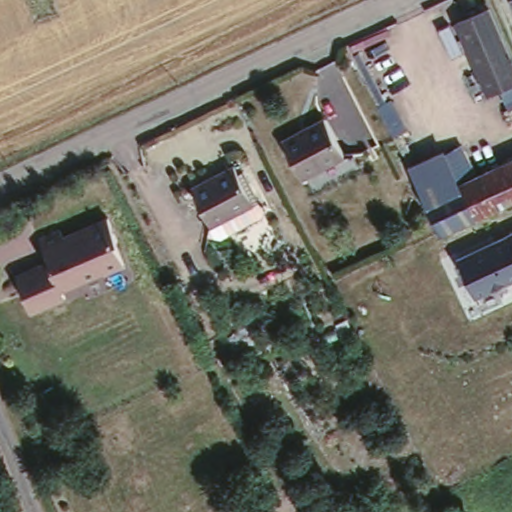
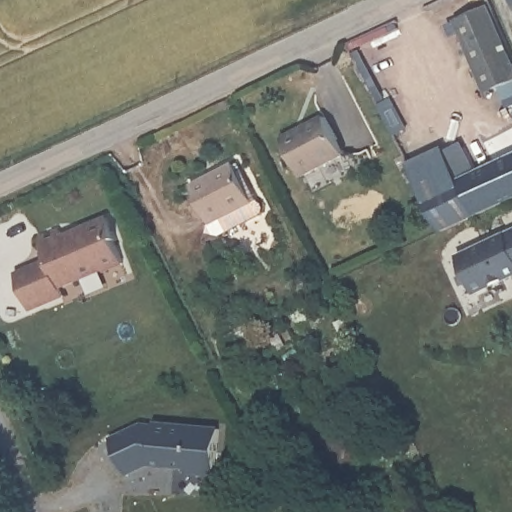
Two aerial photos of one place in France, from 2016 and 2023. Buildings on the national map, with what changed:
unchanged [(484,89),(452,22),(484,7),(512,65),(512,76),(484,89)]
unchanged [(319,116),(340,155),(299,177),(279,138),(319,116)]
unchanged [(440,146),(459,182),(424,200),(402,166),(440,146)]
unchanged [(442,233),(441,232),(424,200),(459,182),(512,155),(512,199),(442,233)]
unchanged [(193,187),(234,167),(255,204),(258,202),(265,214),(232,232),(225,222),(212,227),(193,187)]
unchanged [(49,262),(40,246),(107,219),(125,263),(63,288),(65,298),(33,312),(18,277),(49,262)]
unchanged [(459,261),(512,236),(512,280),(476,297),(459,261)]
new [(143,426),(156,427),(156,424),(224,431),(220,476),(193,473),(189,468),(149,465),(128,475),(111,440),(143,426)]

